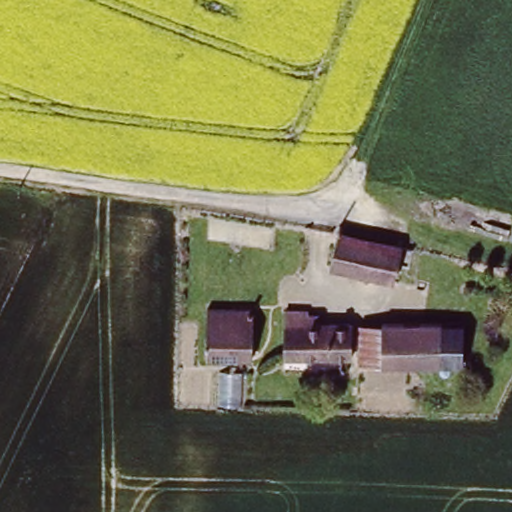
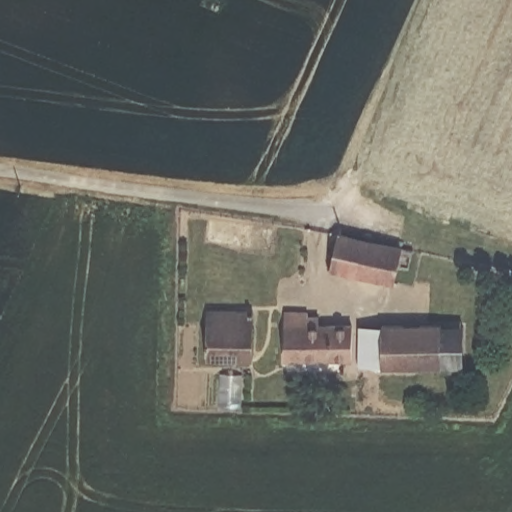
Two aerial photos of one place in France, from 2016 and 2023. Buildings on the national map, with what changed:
unchanged [(416,243),(413,264),(399,263),(396,279),(335,264),(343,228),(416,243)]
unchanged [(257,312),(253,363),(209,361),(211,309),(257,312)]
unchanged [(313,315),(312,328),(354,329),(354,363),(288,360),(288,314),(313,315)]
unchanged [(467,323),(469,366),(446,367),(443,324),(467,323)]
unchanged [(443,324),(446,367),(388,368),(367,368),(365,328),(386,327),(443,324)]

